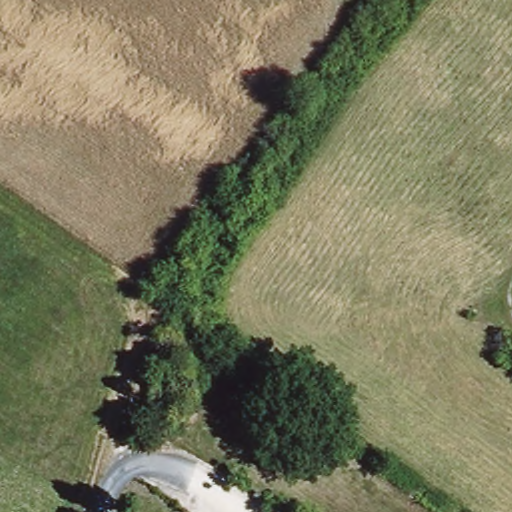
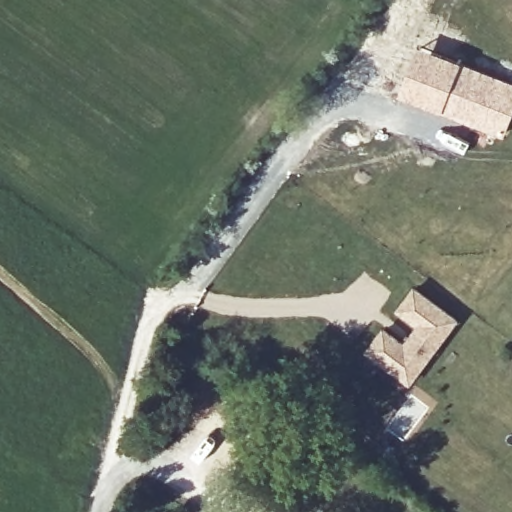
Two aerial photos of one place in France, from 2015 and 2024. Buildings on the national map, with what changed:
new [(418,44),(463,61),(512,80),(512,118),(505,136),(398,96),(418,44)]
new [(383,328),(404,343),(417,326),(396,310),(414,287),(459,320),(410,384),(365,351),(383,328)]

